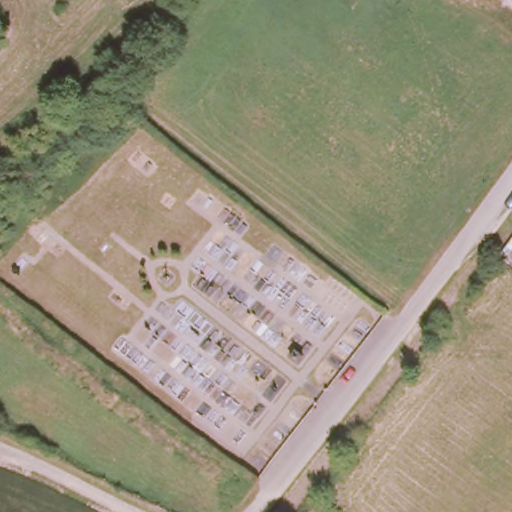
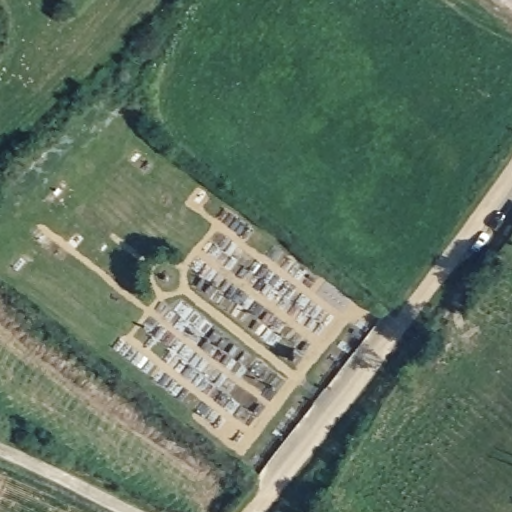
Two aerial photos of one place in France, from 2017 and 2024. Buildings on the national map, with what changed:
[]

